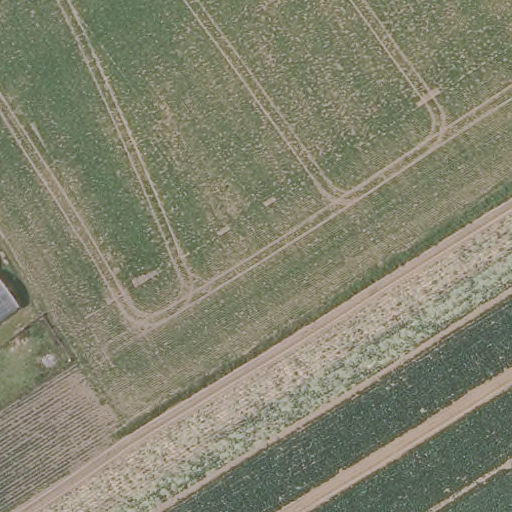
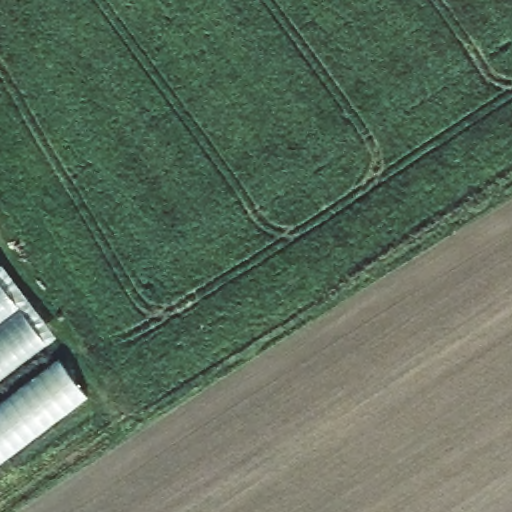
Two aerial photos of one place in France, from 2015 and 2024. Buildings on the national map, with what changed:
unchanged [(0,322),(0,283),(18,308),(0,322)]
new [(18,308),(45,343),(0,378),(0,322),(18,308)]
new [(88,397),(0,465),(0,401),(58,357),(88,397)]

